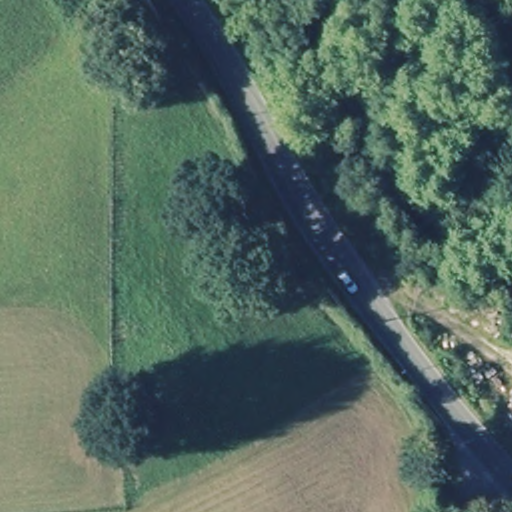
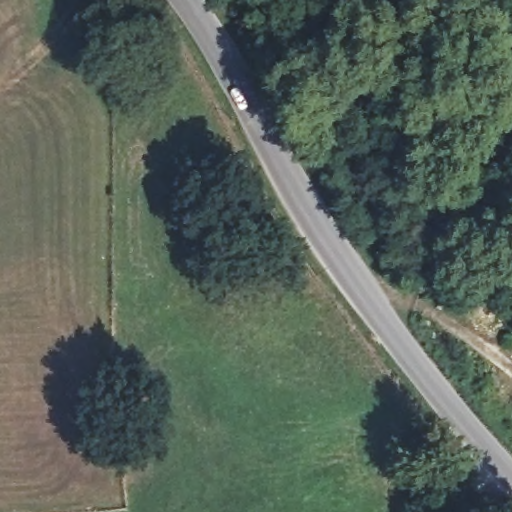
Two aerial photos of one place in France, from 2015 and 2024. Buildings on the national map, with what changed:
[]

